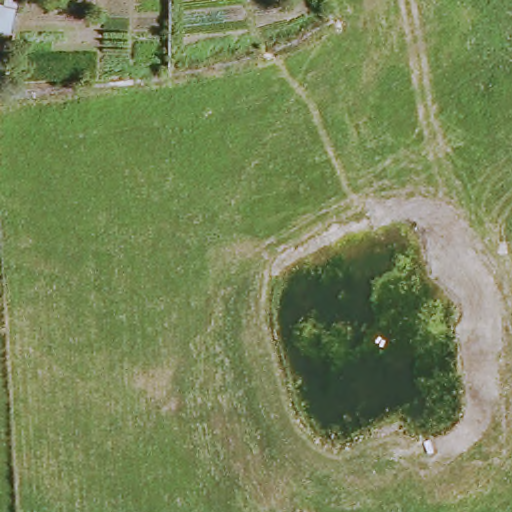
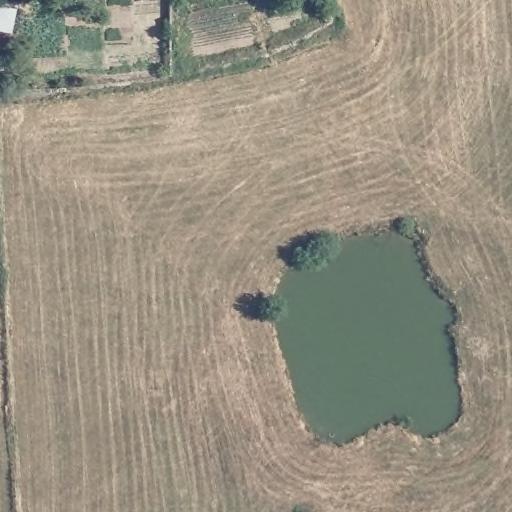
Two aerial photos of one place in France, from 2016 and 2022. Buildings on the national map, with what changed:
unchanged [(2,102),(0,101),(0,50),(9,51),(2,102)]

